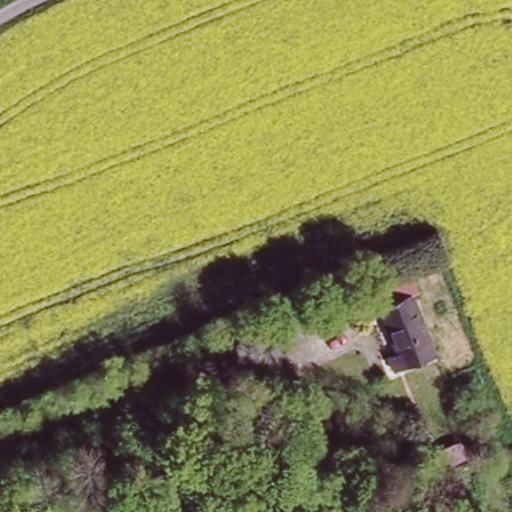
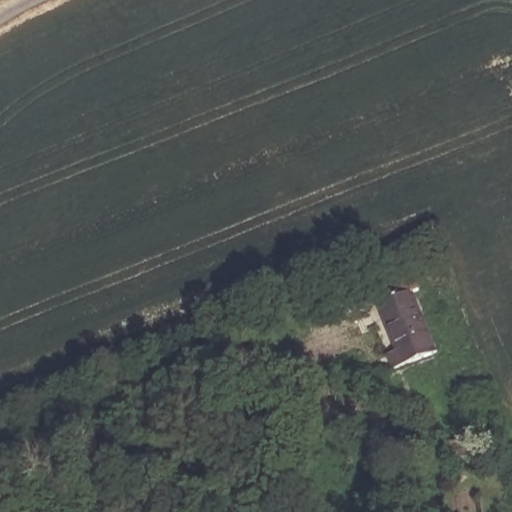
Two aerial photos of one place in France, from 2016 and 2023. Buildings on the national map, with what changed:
unchanged [(381,322),(370,290),(406,278),(417,308),(381,322)]
unchanged [(417,308),(433,356),(389,371),(383,355),(391,352),(381,322),(417,308)]

